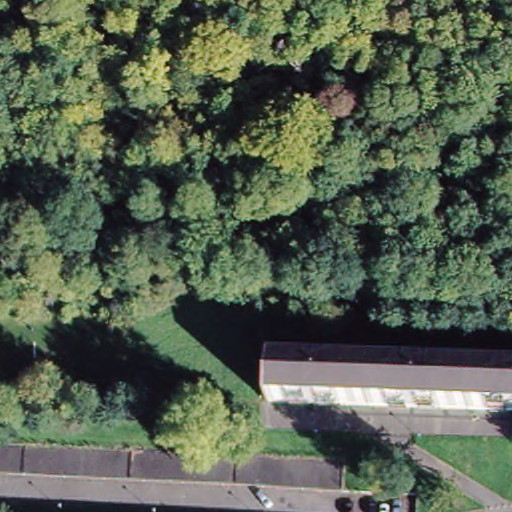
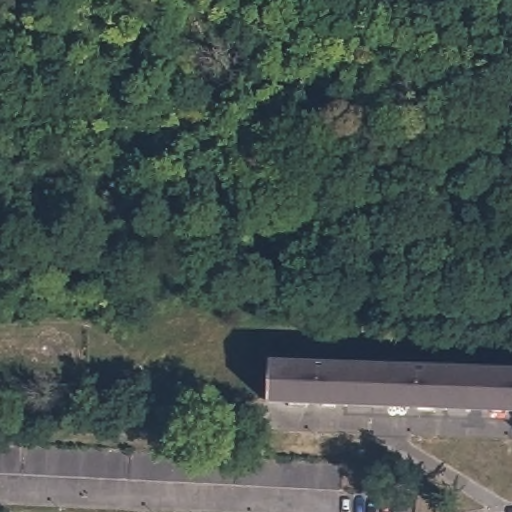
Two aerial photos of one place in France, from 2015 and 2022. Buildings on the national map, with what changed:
unchanged [(270,362),(512,371),(512,412),(268,403),(270,362)]
unchanged [(346,486),(0,467),(0,437),(348,456),(346,486)]

